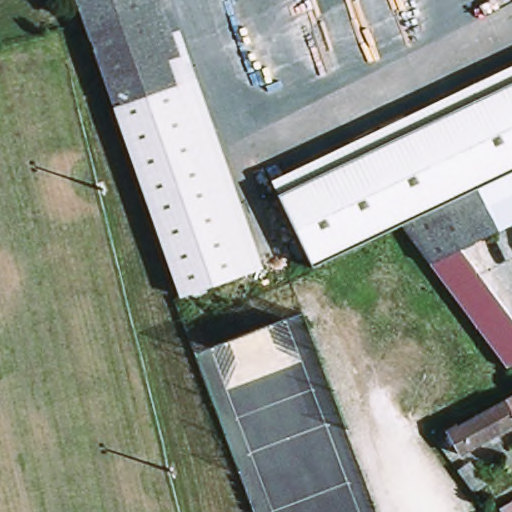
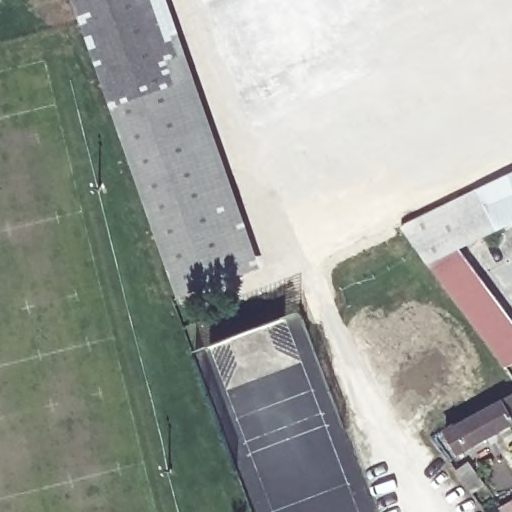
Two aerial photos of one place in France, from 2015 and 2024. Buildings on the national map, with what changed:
unchanged [(163,64),(194,150),(222,231),(236,270),(202,282),(174,292),(148,220),(130,169),(106,99),(82,34),(70,0),(140,0),(163,64)]
unchanged [(184,63),(209,137),(235,211),(254,264),(236,270),(222,231),(194,150),(163,64),(140,0),(161,0),(184,63)]
demolished [(481,193),(424,221),(405,231),(355,255),(313,275),(305,257),(280,203),(346,170),(431,129),(512,90),(512,178),(481,193)]
unchanged [(486,344),(483,340),(433,270),(405,231),(424,221),(481,193),(512,178),(512,231),(465,255),(512,319),(512,369),(506,371),(486,344)]
unchanged [(460,459),(446,436),(456,430),(458,432),(499,408),(512,401),(512,429),(460,459)]
unchanged [(484,484),(475,490),(460,468),(469,462),(484,484)]
demolished [(447,468),(472,512),(442,512),(425,481),(447,468)]
unchanged [(503,512),(501,508),(512,501),(512,512),(503,512)]

